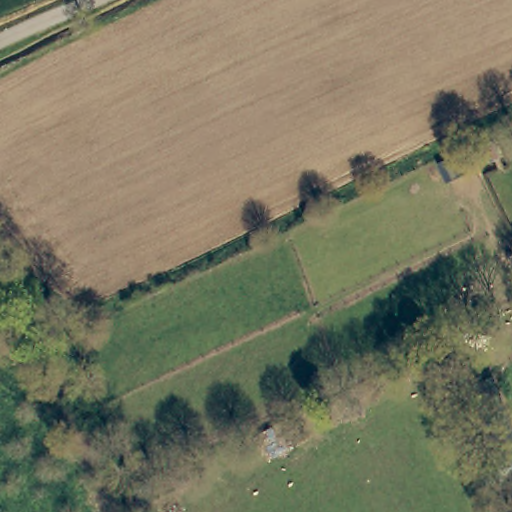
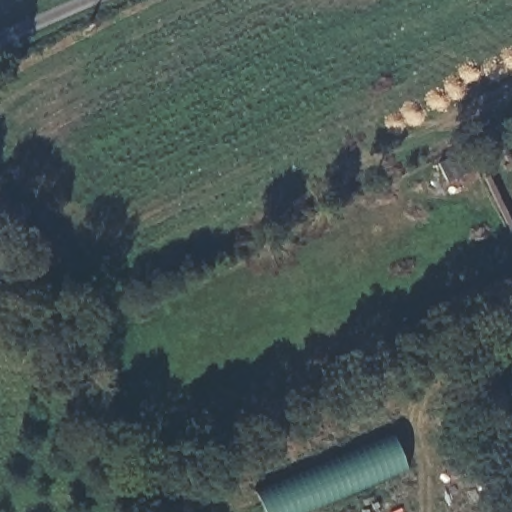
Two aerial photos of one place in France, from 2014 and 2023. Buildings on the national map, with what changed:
new [(313,512),(259,512),(251,492),(390,435),(405,473),(313,512)]

